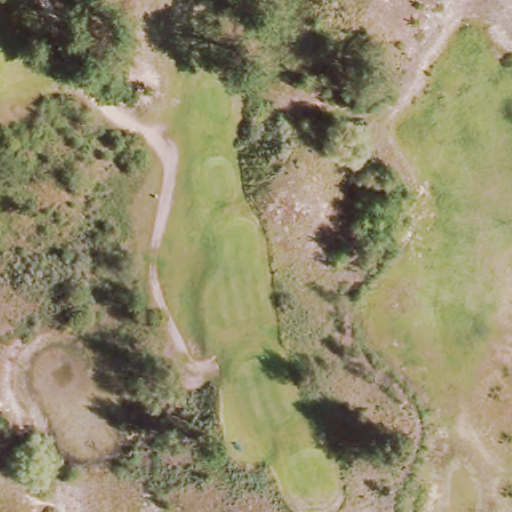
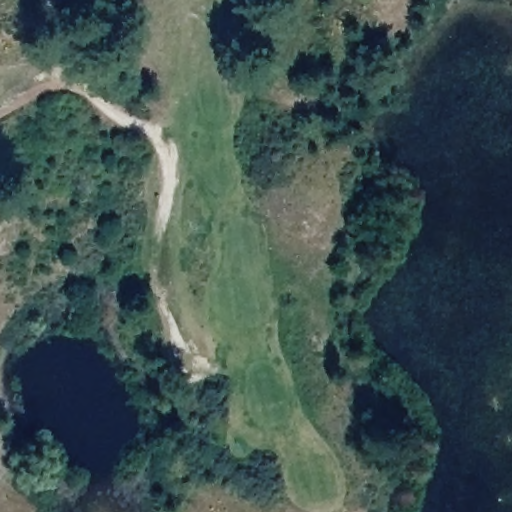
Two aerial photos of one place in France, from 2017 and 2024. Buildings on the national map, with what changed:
[]

